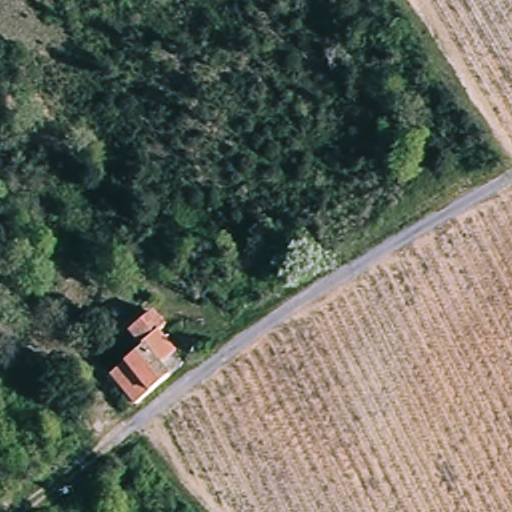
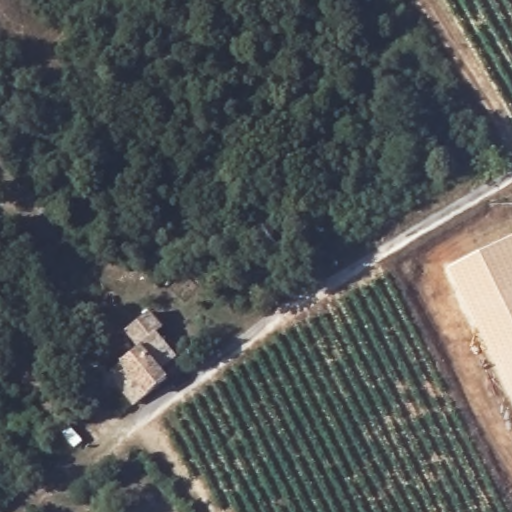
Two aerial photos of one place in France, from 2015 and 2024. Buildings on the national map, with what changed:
new [(447,268),(512,238),(512,401),(447,268)]
unchanged [(108,374),(123,364),(143,350),(131,334),(138,329),(158,315),(166,329),(159,334),(171,348),(177,359),(169,365),(160,372),(168,381),(147,396),(133,406),(119,389),(108,374)]

